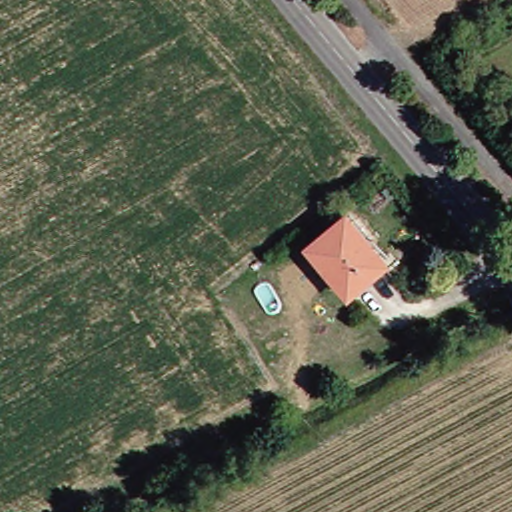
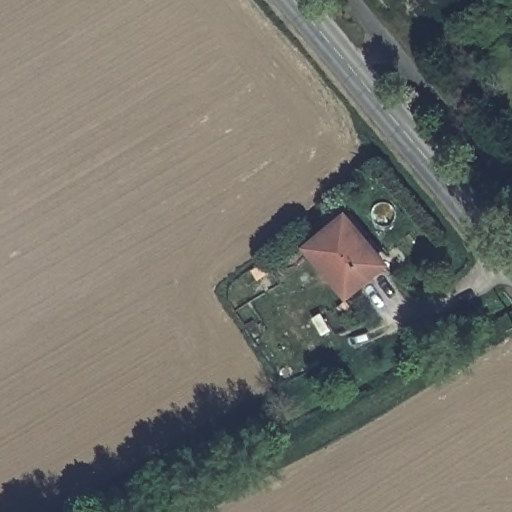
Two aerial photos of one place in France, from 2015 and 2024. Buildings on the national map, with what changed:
unchanged [(386,263),(349,293),(335,276),(337,274),(314,245),(347,217),(386,263)]

